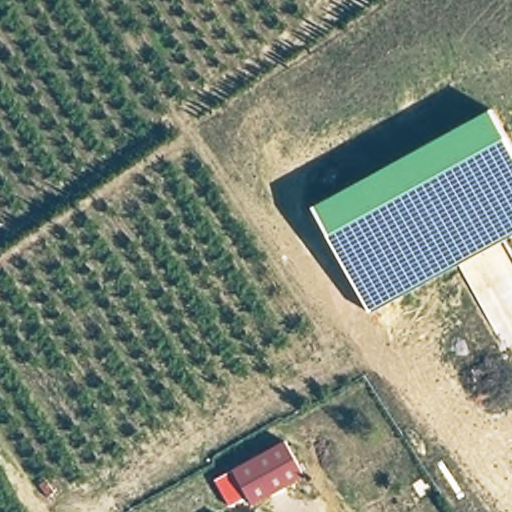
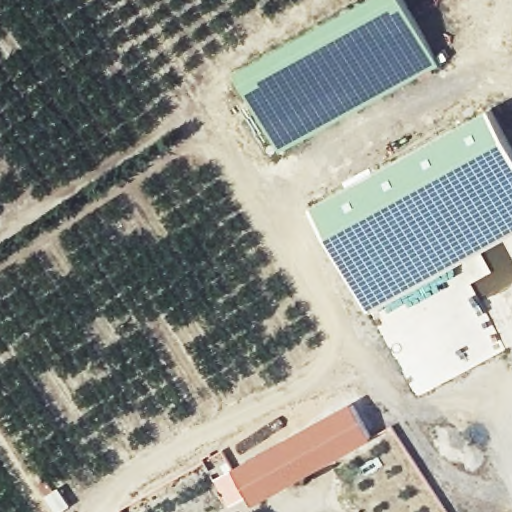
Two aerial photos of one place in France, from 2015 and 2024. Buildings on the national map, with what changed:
new [(365,0),(405,0),(439,62),(280,152),(234,70),(365,0)]
unchanged [(491,109),(512,150),(512,234),(371,313),(314,206),(491,109)]
unchanged [(301,477),(248,503),(231,467),(284,441),(301,477)]

